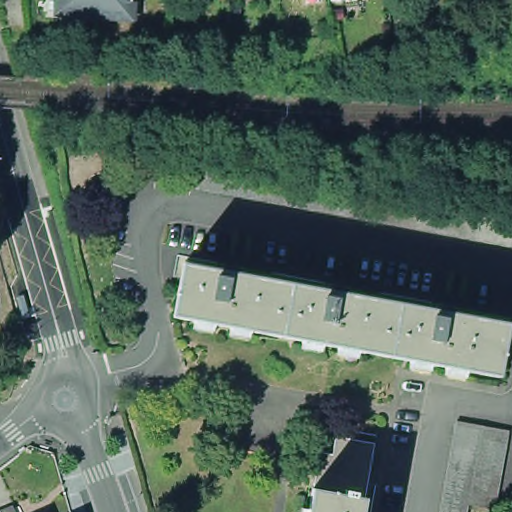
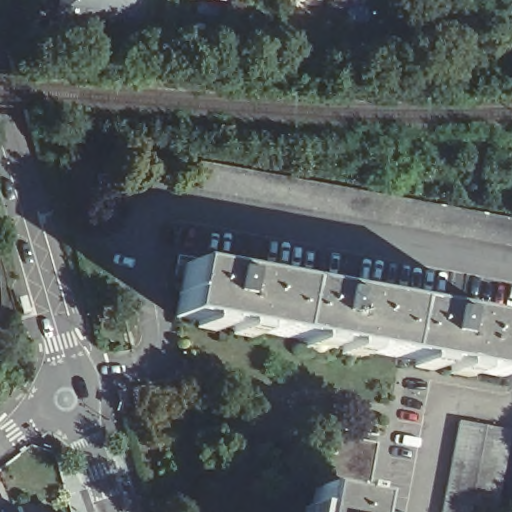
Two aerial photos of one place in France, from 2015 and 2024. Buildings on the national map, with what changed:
unchanged [(56,19),(57,0),(136,0),(133,25),(56,19)]
unchanged [(284,0),(296,0),(285,1),(284,0)]
unchanged [(200,160),(512,217),(512,244),(195,187),(200,160)]
unchanged [(227,263),(250,267),(249,274),(299,283),(288,335),(180,315),(190,263),(226,269),(227,263)]
unchanged [(335,283),(360,288),(358,294),(407,303),(397,355),(288,335),(299,283),(335,289),(335,283)]
unchanged [(467,307),(466,314),(512,323),(512,350),(507,376),(397,355),(407,303),(443,309),(445,303),(467,307)]
unchanged [(458,420),(512,430),(497,509),(470,504),(444,499),(458,420)]
unchanged [(366,497),(363,512),(309,512),(313,487),(366,497)]
unchanged [(470,504),(469,512),(442,512),(444,499),(470,504)]

